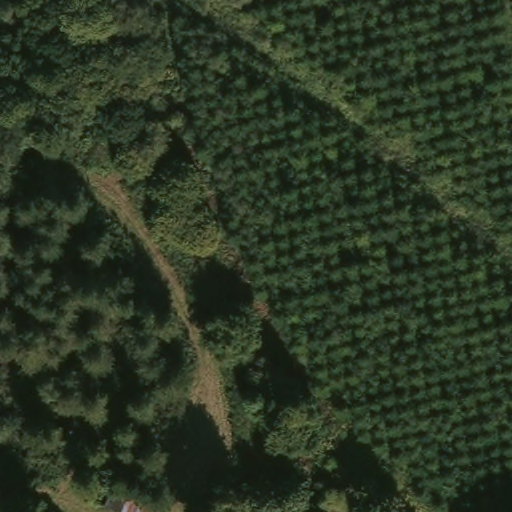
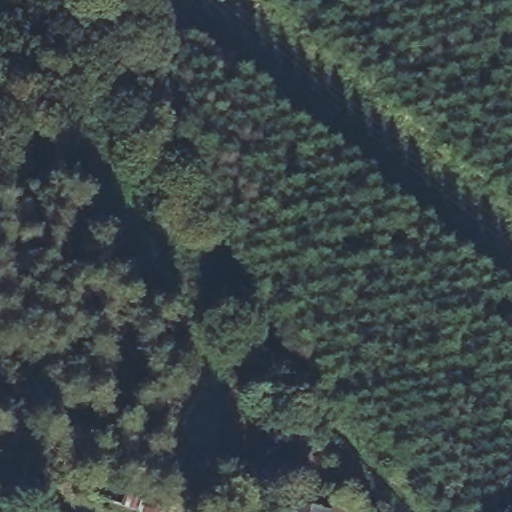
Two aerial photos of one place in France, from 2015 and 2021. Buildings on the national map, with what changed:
unchanged [(169,497),(165,512),(146,512),(103,495),(110,473),(169,497)]
unchanged [(358,487),(376,512),(335,512),(337,500),(358,487)]
unchanged [(293,510),(296,490),(337,500),(335,512),(267,512),(269,505),(293,510)]

